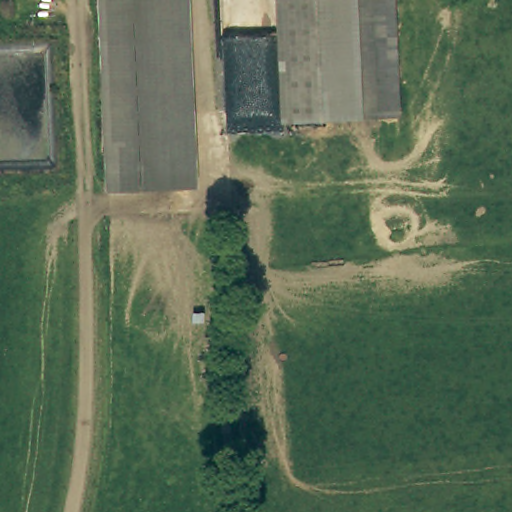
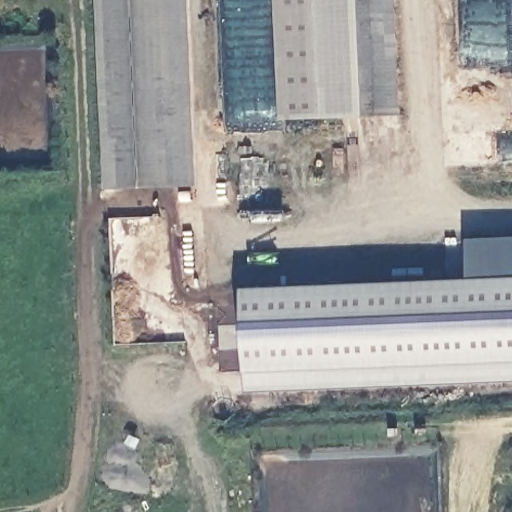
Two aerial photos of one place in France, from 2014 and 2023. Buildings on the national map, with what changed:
unchanged [(109,14),(108,0),(159,0),(159,12),(109,14)]
unchanged [(114,191),(109,14),(159,12),(159,0),(178,0),(185,188),(114,191)]
unchanged [(283,121),(278,0),(396,0),(401,116),(283,121)]
new [(242,289),(397,283),(395,269),(425,268),(430,281),(468,280),(466,241),(512,239),(512,383),(247,393),(242,289)]

